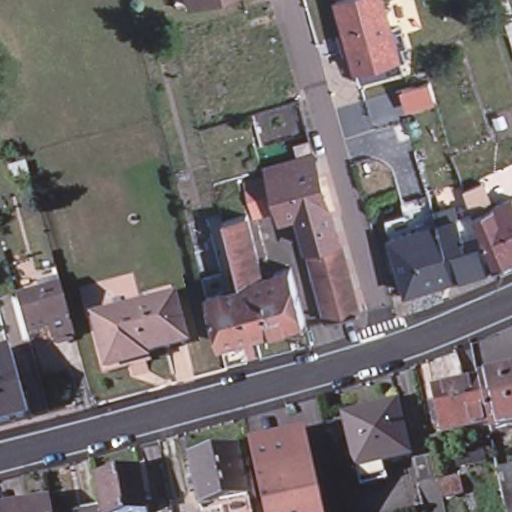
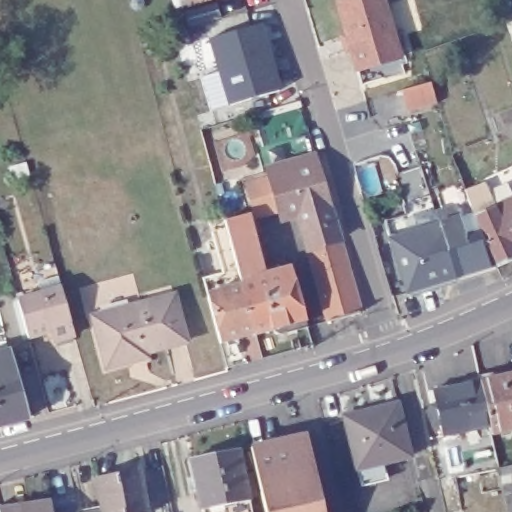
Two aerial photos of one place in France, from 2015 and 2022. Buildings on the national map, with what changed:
unchanged [(178,0),(220,0),(181,11),(178,0)]
unchanged [(350,37),(345,39),(340,23),(345,22),(339,0),(386,0),(399,45),(403,59),(392,62),(360,72),(356,58),(350,37)]
new [(282,90),(227,107),(207,38),(262,23),(282,90)]
unchanged [(404,89),(402,86),(429,79),(430,82),(435,97),(407,104),(404,89)]
unchanged [(285,265),(300,318),(284,323),(285,325),(283,330),(275,332),(269,330),(267,328),(249,333),(215,342),(202,293),(197,275),(217,270),(210,242),(224,239),(217,217),(241,213),(247,211),(239,183),(265,177),(265,175),(277,171),(310,162),(322,205),(294,213),(294,212),(289,213),(277,216),(274,208),(251,214),(255,230),(262,258),(254,260),(257,273),(285,265)]
unchanged [(472,214),(465,192),(481,185),(481,186),(492,210),(512,202),(512,263),(496,269),(495,266),(488,268),(454,278),(405,293),(390,241),(437,226),(435,218),(455,212),(458,223),(473,218),(472,214)]
unchanged [(302,246),(294,213),(322,205),(332,238),(302,246)]
unchanged [(354,312),(322,319),(302,246),(332,238),(354,312)]
unchanged [(51,338),(49,330),(27,334),(17,296),(37,289),(40,294),(59,290),(57,285),(59,282),(73,332),(51,338)]
unchanged [(180,343),(175,344),(142,353),(130,307),(163,298),(167,297),(180,343)]
unchanged [(121,358),(122,363),(101,368),(87,318),(130,307),(142,353),(121,358)]
unchanged [(0,430),(0,357),(11,353),(15,371),(16,370),(30,422),(0,430)]
unchanged [(490,432),(488,423),(479,378),(512,371),(512,427),(490,432)]
unchanged [(440,434),(430,388),(479,378),(488,423),(440,434)]
unchanged [(363,464),(350,411),(390,402),(402,455),(363,464)]
unchanged [(252,452),(294,442),(306,439),(325,512),(267,512),(252,452)]
unchanged [(219,499),(197,503),(194,484),(187,486),(181,455),(187,454),(220,447),(237,444),(247,494),(251,512),(221,512),(219,499)]
unchanged [(512,461),(512,512),(506,512),(497,464),(512,461)]
unchanged [(150,508),(127,512),(106,512),(100,471),(142,464),(150,508)]
unchanged [(437,476),(457,472),(461,487),(440,491),(437,476)]
unchanged [(55,512),(2,512),(2,508),(29,505),(27,500),(53,496),(55,512)]
unchanged [(102,507),(103,510),(103,512),(69,512),(102,507)]

